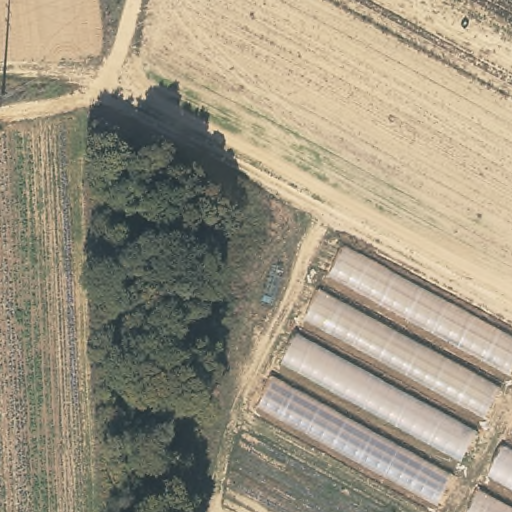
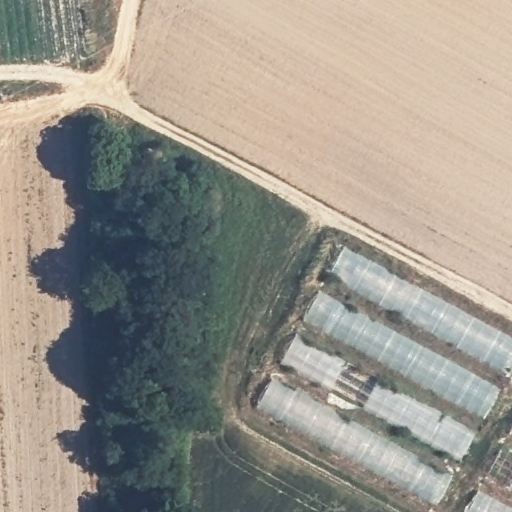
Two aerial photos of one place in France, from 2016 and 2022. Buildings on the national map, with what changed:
unchanged [(346,241),(512,329),(512,512),(463,512),(438,506),(257,404),(346,241)]

